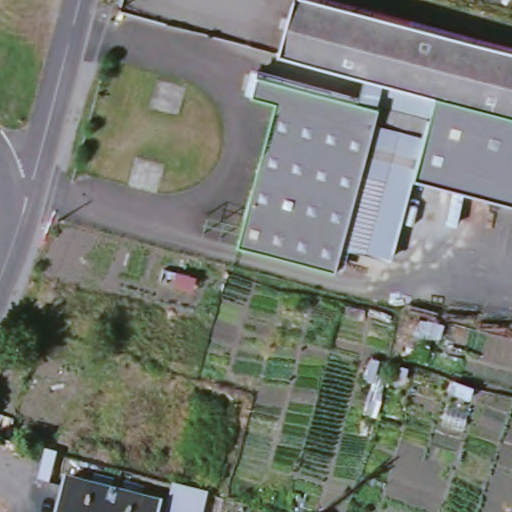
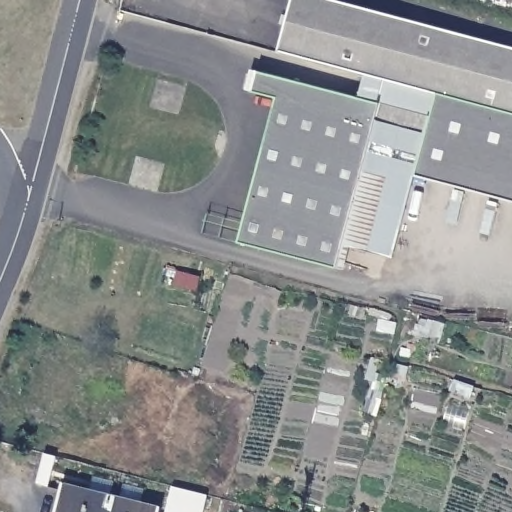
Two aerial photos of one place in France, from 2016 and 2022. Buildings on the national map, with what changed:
unchanged [(479,100),(365,70),(279,46),(291,0),(356,0),(512,41),(512,108),(479,100)]
unchanged [(412,170),(391,252),(367,245),(360,270),(239,237),(277,94),(253,87),(258,66),(359,94),(365,70),(479,100),(456,181),(412,170)]
unchanged [(512,108),(512,196),(456,181),(479,100),(512,108)]
unchanged [(62,484),(167,510),(167,512),(55,512),(62,484)]

